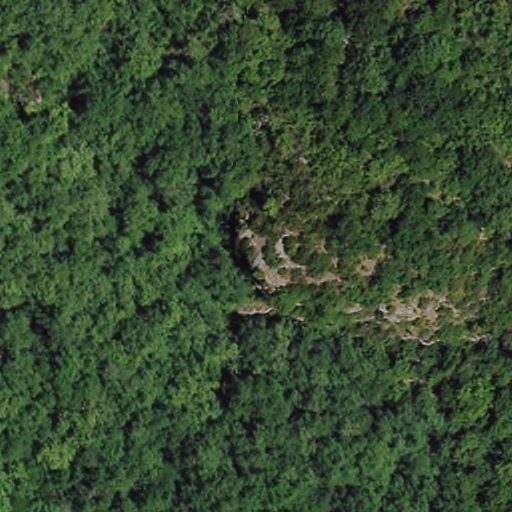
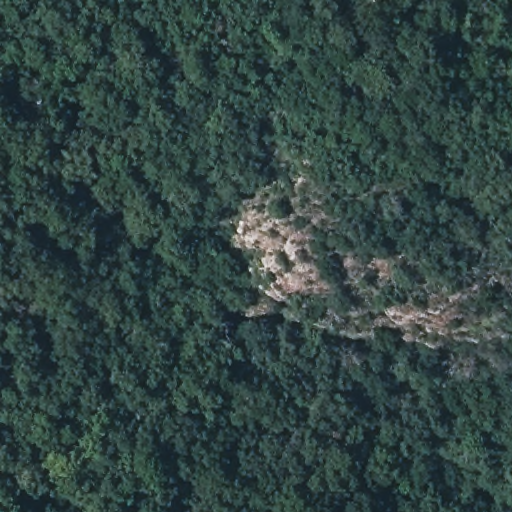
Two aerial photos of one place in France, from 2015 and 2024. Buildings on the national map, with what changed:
[]

